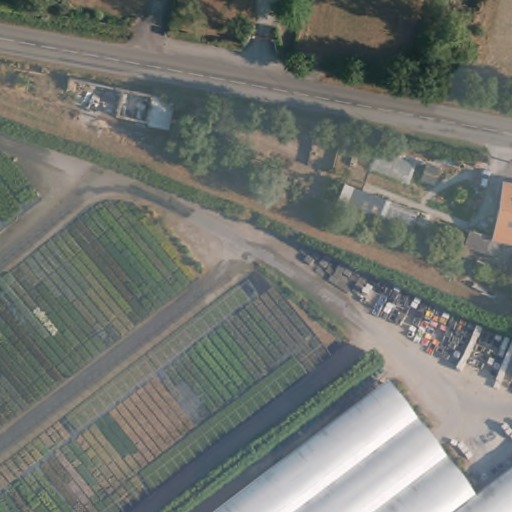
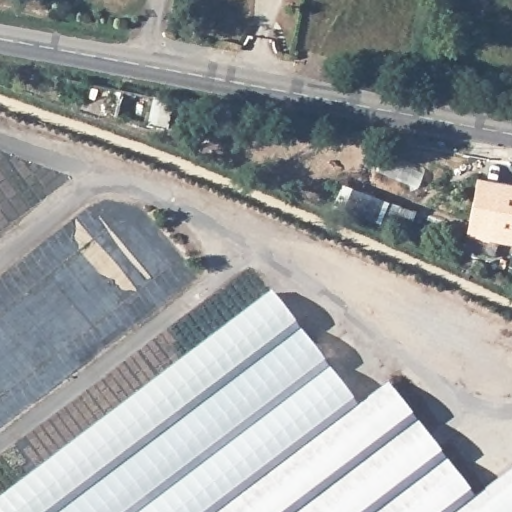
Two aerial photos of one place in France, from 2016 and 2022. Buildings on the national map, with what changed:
unchanged [(490,258),(460,247),(465,232),(488,241),(500,186),(512,188),(512,247),(497,244),(490,258)]
unchanged [(406,232),(365,217),(358,215),(365,195),(373,198),(413,213),(406,232)]
new [(221,512),(0,512),(0,499),(271,293),(358,408),(350,414),(221,512)]
unchanged [(475,498),(457,512),(221,512),(389,385),(475,498)]
unchanged [(512,471),(512,512),(457,512),(475,498),(512,471)]

